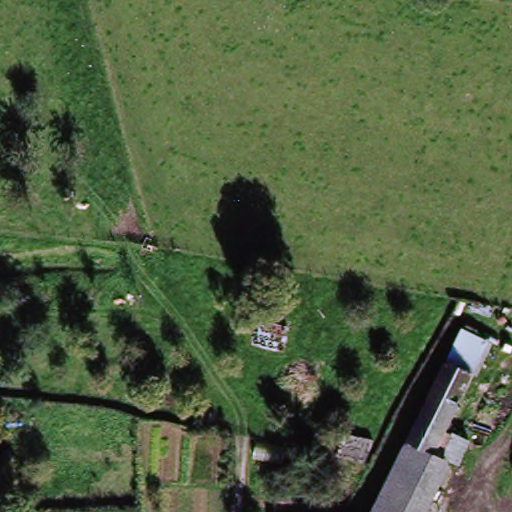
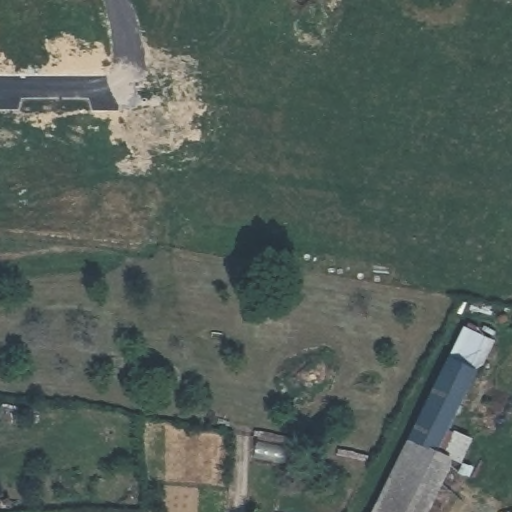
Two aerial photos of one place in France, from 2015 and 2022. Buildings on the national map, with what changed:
unchanged [(491,335),(450,430),(465,436),(431,512),(376,512),(462,325),(491,335)]
unchanged [(315,451),(318,433),(343,438),(346,419),(382,428),(366,461),(315,451)]

